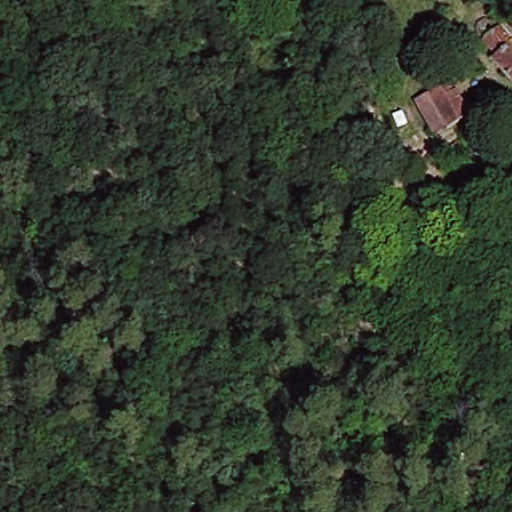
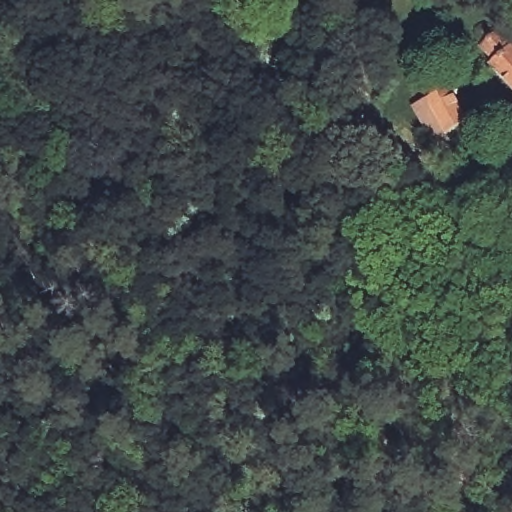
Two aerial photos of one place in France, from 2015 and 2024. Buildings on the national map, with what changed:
unchanged [(497,57),(493,44),(499,39),(512,41),(512,86),(490,64),(497,57)]
unchanged [(467,76),(475,91),(458,102),(466,116),(442,130),(422,103),(467,76)]
unchanged [(432,147),(447,140),(462,168),(447,175),(432,147)]

